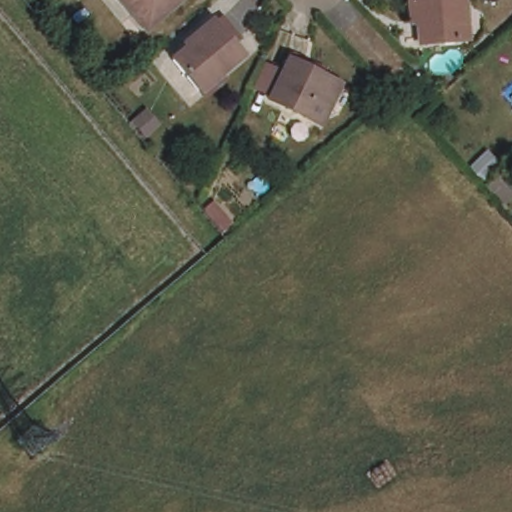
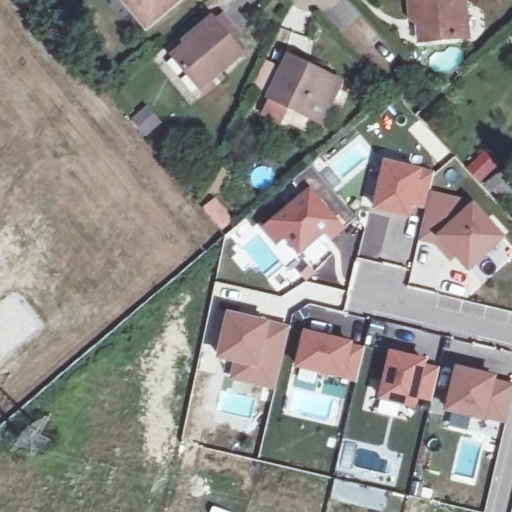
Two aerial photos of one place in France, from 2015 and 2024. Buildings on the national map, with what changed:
unchanged [(121,0),(179,0),(145,28),(121,0)]
unchanged [(418,40),(415,19),(408,19),(406,0),(466,0),(469,34),(418,40)]
unchanged [(222,17),(240,38),(234,43),(244,55),(202,91),(174,59),(222,17)]
unchanged [(290,59),(343,84),(325,123),(271,97),(290,59)]
new [(332,237),(325,230),(299,252),(283,235),(277,240),(267,227),(304,196),(292,181),(310,165),(355,217),(332,237)]
new [(388,166),(436,177),(433,193),(429,209),(414,205),(411,219),(378,211),(388,166)]
new [(450,261),(434,244),(418,241),(429,209),(433,193),(472,203),(504,238),(469,272),(455,257),(450,261)]
new [(240,363),(222,359),(232,318),(292,332),(279,390),(255,384),(236,380),(240,363)]
new [(308,335),(353,346),(352,349),(367,352),(360,382),(300,368),(308,335)]
new [(434,405),(417,401),(416,408),(383,400),(394,355),(426,363),(425,368),(442,372),(434,405)]
new [(495,380),(495,384),(512,388),(512,407),(509,423),(487,418),(487,420),(450,412),(459,371),(495,380)]

